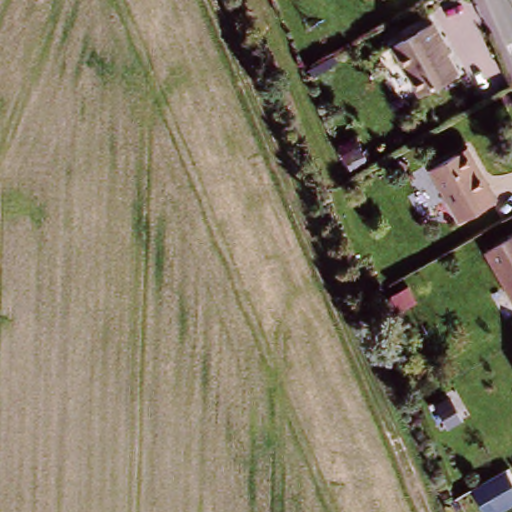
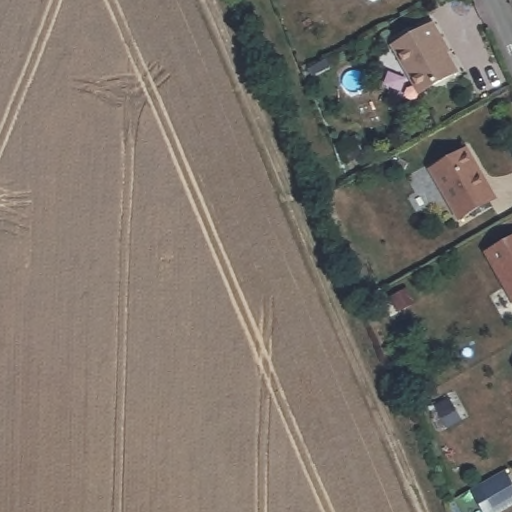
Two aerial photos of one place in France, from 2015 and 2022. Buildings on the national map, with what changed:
unchanged [(427,19),(438,33),(435,35),(456,65),(422,90),(390,46),(427,19)]
unchanged [(468,148),(499,197),(463,219),(432,170),(468,148)]
unchanged [(373,203),(370,195),(363,178),(377,172),(385,189),(388,197),(373,203)]
unchanged [(477,256),(512,233),(512,310),(512,311),(477,256)]
unchanged [(512,480),(512,504),(496,512),(486,512),(474,486),(506,469),(512,480)]

